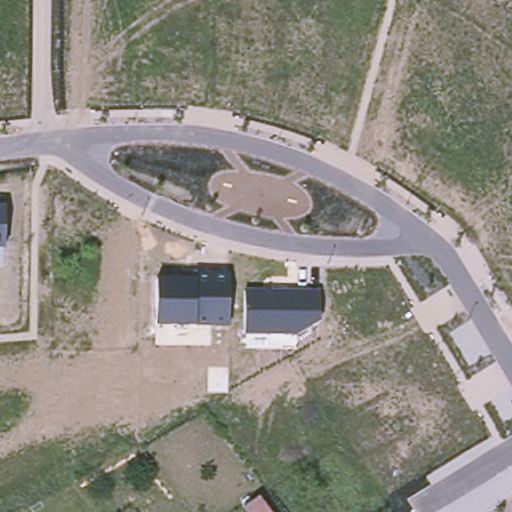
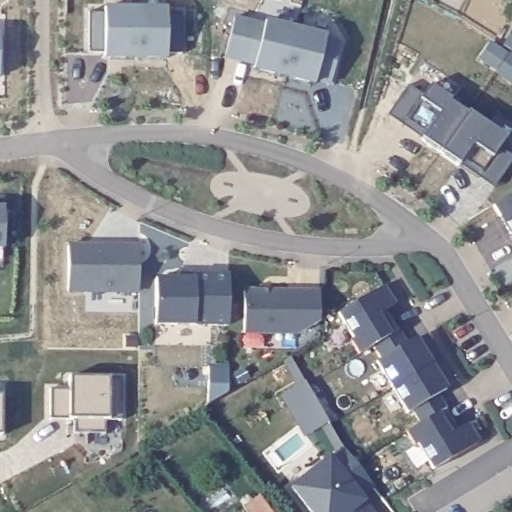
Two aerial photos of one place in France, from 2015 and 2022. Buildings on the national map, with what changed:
new [(105,11),(105,8),(166,8),(166,12),(181,12),(181,52),(166,52),(166,58),(104,57),(104,52),(89,52),(88,10),(105,11)]
new [(264,24),(265,21),(324,35),(323,38),(339,43),(329,82),(315,79),(314,82),(254,68),(254,64),(226,57),(234,17),(264,24)]
new [(7,78),(0,78),(0,34),(7,34),(7,78)]
new [(422,96),(430,85),(452,100),(449,103),(466,115),(469,112),(506,136),(499,147),(512,155),(512,162),(496,184),(462,160),(460,164),(422,139),(425,135),(392,111),(409,85),(422,96)]
new [(492,205),(512,193),(512,236),(492,205)]
unchanged [(2,247),(0,247),(0,208),(3,208),(2,247)]
new [(138,241),(138,288),(69,287),(69,241),(138,241)]
unchanged [(229,275),(229,325),(155,325),(155,279),(179,280),(179,275),(192,275),(229,275)]
new [(394,305),(386,310),(412,353),(420,348),(440,382),(432,387),(458,430),(467,425),(477,442),(433,468),(418,443),(416,445),(407,432),(422,423),(414,409),(409,412),(378,362),(383,358),(376,346),(360,354),(354,344),(356,342),(340,314),(384,288),(394,305)]
unchanged [(297,333),(244,332),(244,291),(320,291),(320,320),(297,333)]
new [(228,367),(228,392),(207,392),(208,367),(228,367)]
new [(372,486),(359,496),(371,512),(309,512),(290,489),(344,448),(372,486)]
unchanged [(265,512),(243,512),(241,509),(255,498),(265,512)]

